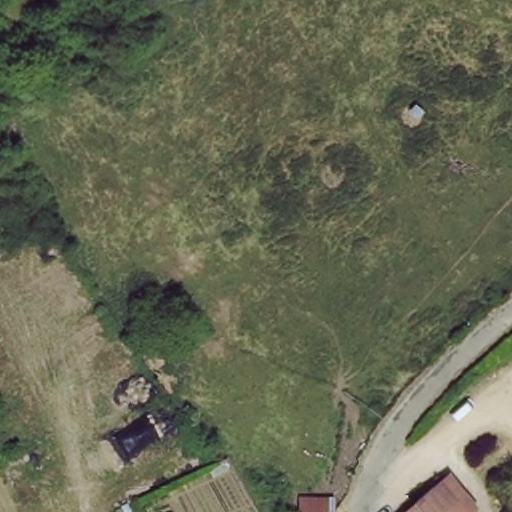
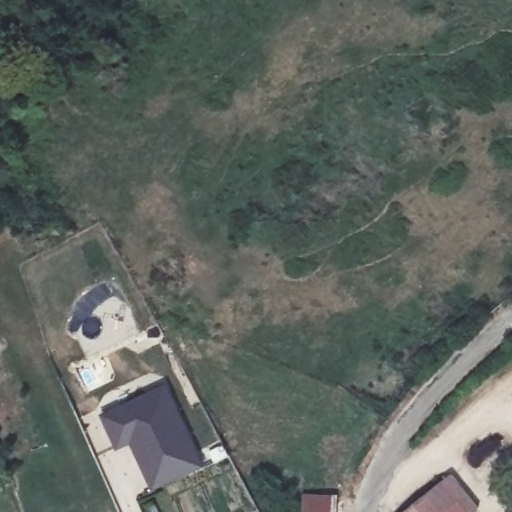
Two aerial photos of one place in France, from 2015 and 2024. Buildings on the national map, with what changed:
new [(165,381),(204,464),(157,488),(134,444),(118,452),(100,411),(165,381)]
unchanged [(461,490),(476,509),(472,512),(412,512),(453,480),(461,490)]
unchanged [(330,512),(313,512),(313,511),(330,512)]

